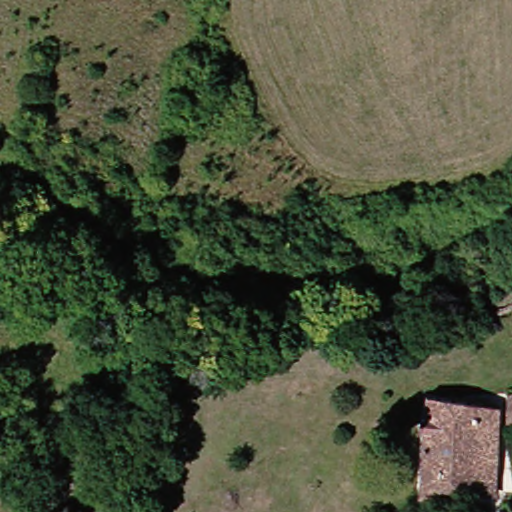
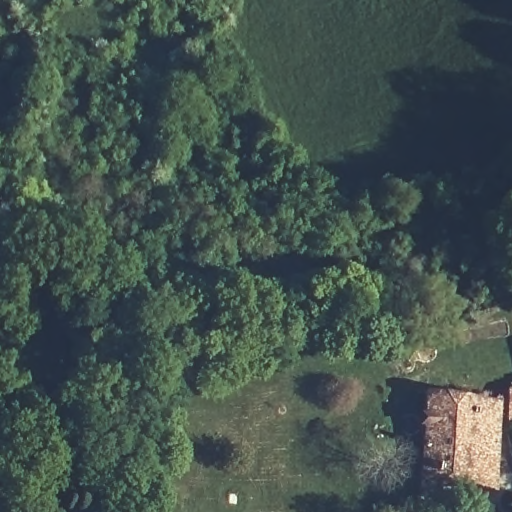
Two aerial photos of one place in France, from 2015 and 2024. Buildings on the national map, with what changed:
unchanged [(512,390),(512,425),(506,426),(500,392),(512,390)]
unchanged [(469,494),(430,492),(429,504),(411,502),(419,399),(479,403),(469,494)]
unchanged [(495,404),(486,496),(469,494),(479,403),(495,404)]

